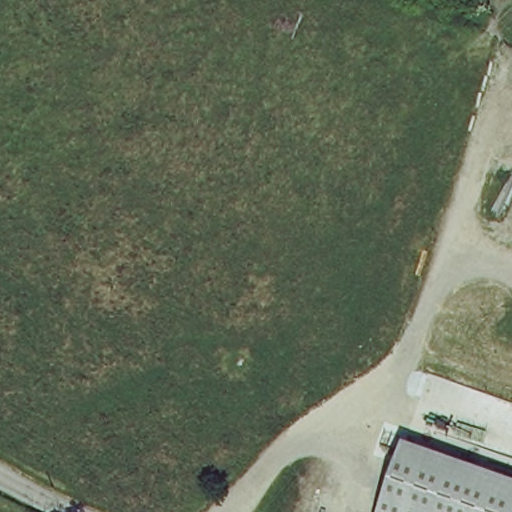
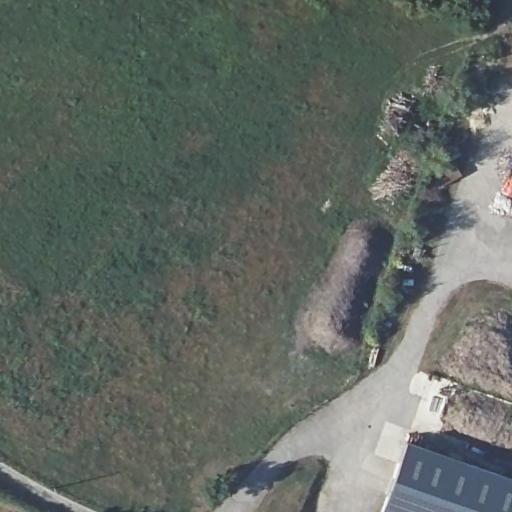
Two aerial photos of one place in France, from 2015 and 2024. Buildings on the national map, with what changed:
unchanged [(379,512),(407,430),(477,456),(445,512),(379,512)]
unchanged [(512,469),(512,512),(445,512),(477,456),(512,469)]

